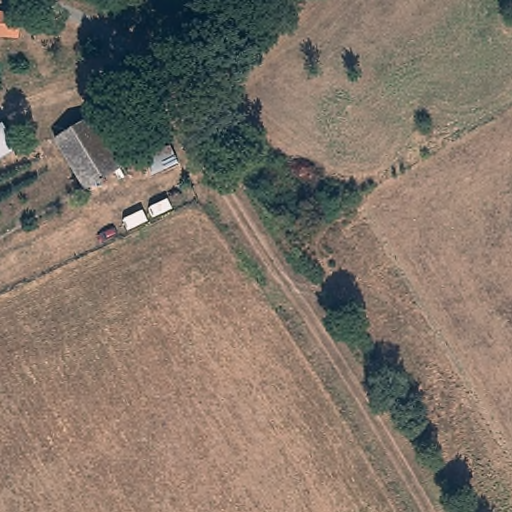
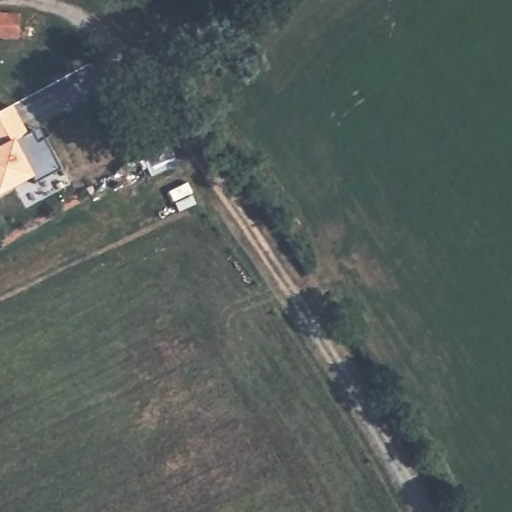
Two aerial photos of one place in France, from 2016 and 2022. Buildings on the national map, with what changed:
unchanged [(0,45),(0,22),(20,22),(21,46),(0,45)]
new [(28,134),(39,127),(62,169),(36,183),(32,179),(0,196),(0,110),(12,104),(28,134)]
unchanged [(127,128),(106,141),(101,133),(122,121),(127,128)]
unchanged [(86,194),(57,146),(91,125),(122,173),(86,194)]

